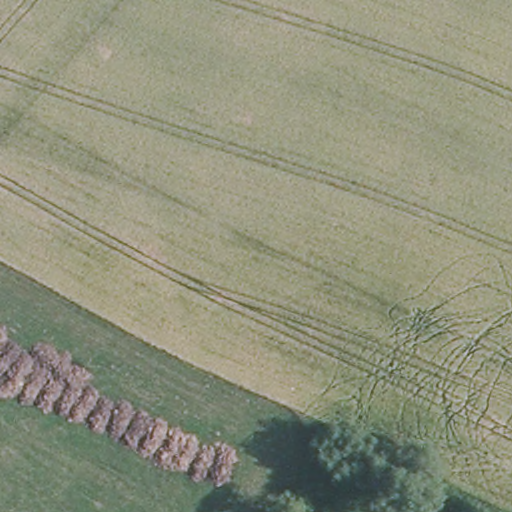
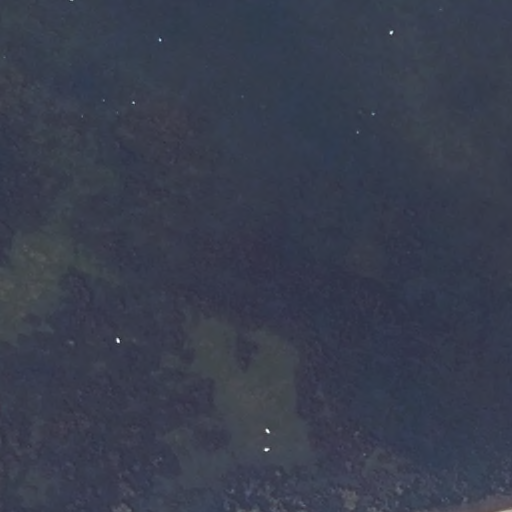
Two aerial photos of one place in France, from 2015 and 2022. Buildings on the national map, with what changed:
[]

